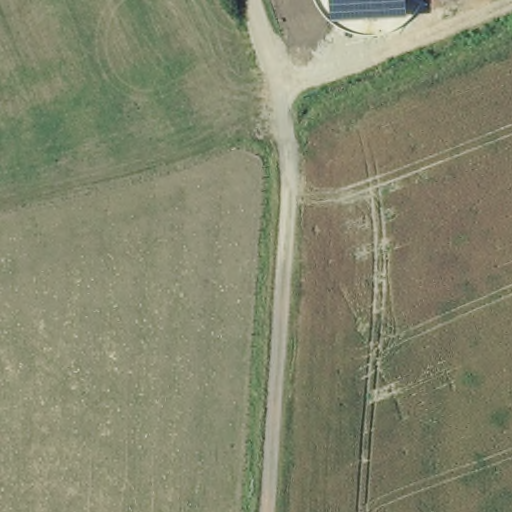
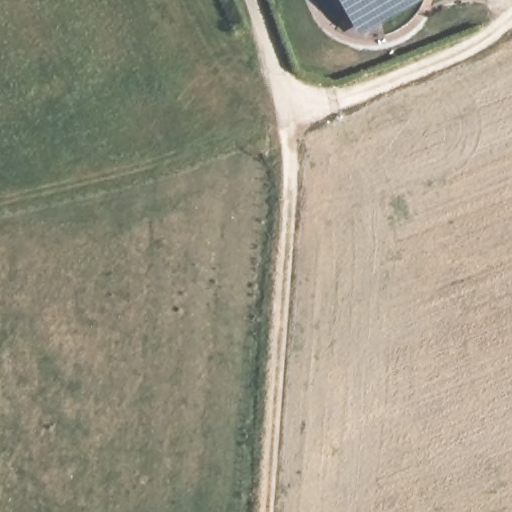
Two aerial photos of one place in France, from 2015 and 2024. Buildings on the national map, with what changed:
unchanged [(410,19),(335,23),(334,0),(410,0),(410,19)]

